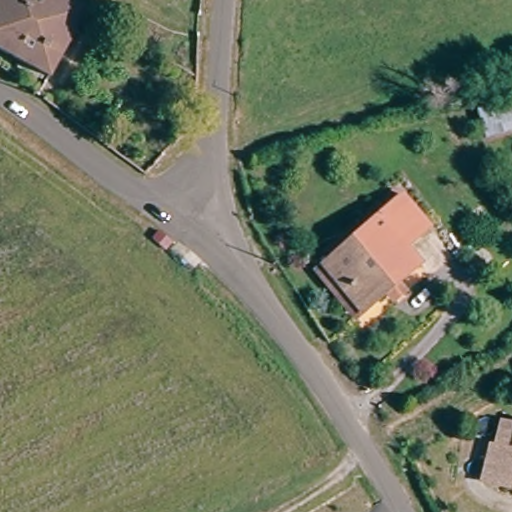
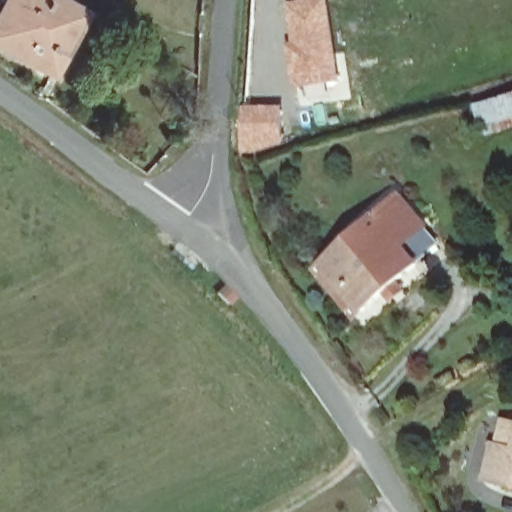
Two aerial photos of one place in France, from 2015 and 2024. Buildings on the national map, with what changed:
unchanged [(0,52),(0,0),(65,0),(83,9),(51,76),(0,52)]
new [(287,3),(307,0),(331,0),(345,84),(294,93),(286,42),(292,41),(287,3)]
unchanged [(473,107),(512,95),(512,129),(479,139),(473,107)]
new [(242,105),(282,105),(285,146),(240,155),(242,105)]
unchanged [(319,270),(325,263),(405,190),(433,221),(405,247),(419,265),(366,311),(359,317),(319,270)]
unchanged [(489,476),(496,441),(501,441),(507,415),(512,416),(512,480),(489,476)]

